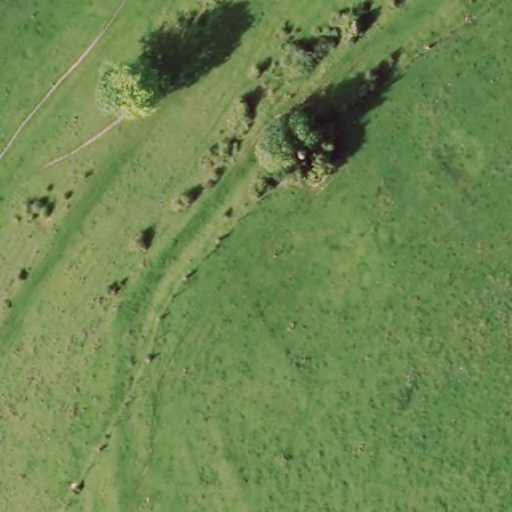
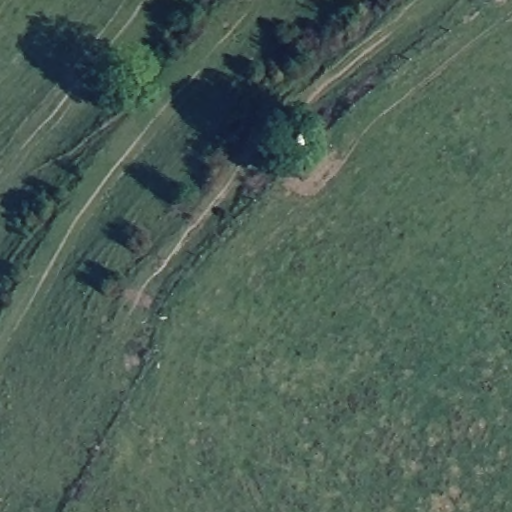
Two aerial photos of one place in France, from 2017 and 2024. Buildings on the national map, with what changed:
unchanged [(330,151),(304,179),(272,149),(297,121),(330,151)]

